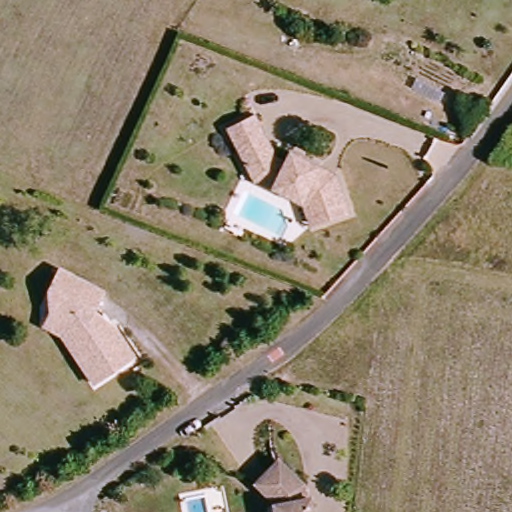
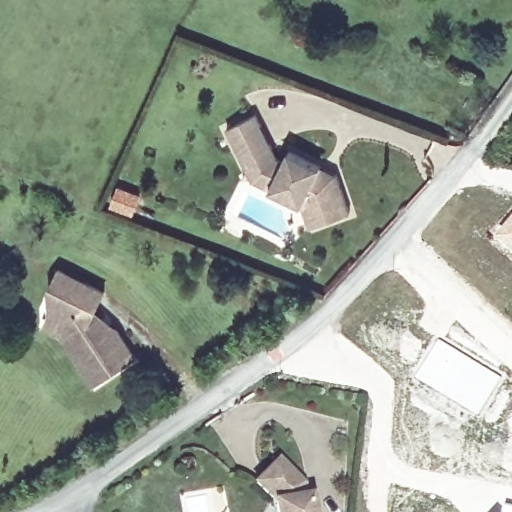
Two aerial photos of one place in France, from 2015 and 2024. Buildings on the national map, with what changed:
unchanged [(303,208),(255,183),(249,172),(229,131),(258,116),(279,159),(286,163),(291,154),(322,169),(320,177),(327,180),(338,177),(352,215),(316,229),(311,230),(303,208)]
unchanged [(254,233),(237,224),(245,211),(261,219),(254,233)]
new [(512,242),(498,230),(512,214),(512,242)]
unchanged [(111,329),(121,333),(139,361),(99,386),(77,349),(87,343),(50,324),(67,292),(56,286),(64,270),(110,294),(100,314),(111,329)]
new [(438,336),(505,377),(477,417),(413,375),(438,336)]
unchanged [(272,502),(255,484),(277,462),(302,486),(304,500),(309,499),(311,512),(273,512),(272,502)]
new [(498,512),(495,512),(497,511),(498,512)]

